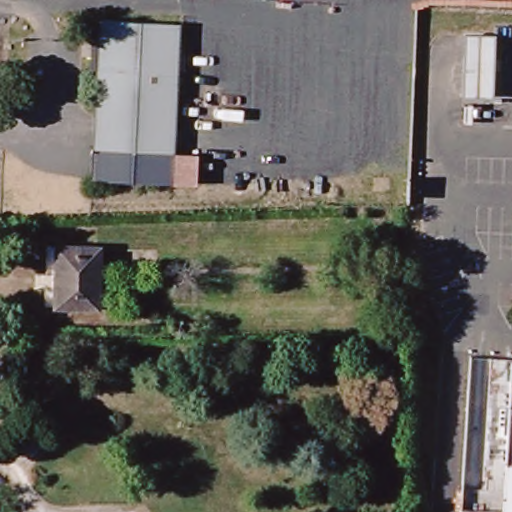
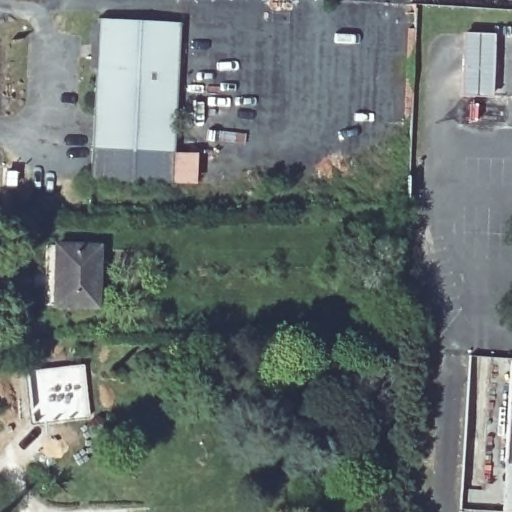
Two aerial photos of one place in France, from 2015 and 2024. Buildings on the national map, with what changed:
unchanged [(172,181),(90,175),(96,56),(102,48),(93,36),(93,13),(182,20),(174,150),(195,152),(193,182),(172,181)]
unchanged [(491,106),(461,106),(462,43),(492,43),(491,106)]
unchanged [(60,242),(100,245),(95,302),(55,299),(60,242)]
unchanged [(503,361),(512,361),(512,465),(500,464),(503,361)]
new [(84,362),(90,416),(34,422),(32,414),(35,414),(30,369),(84,362)]

